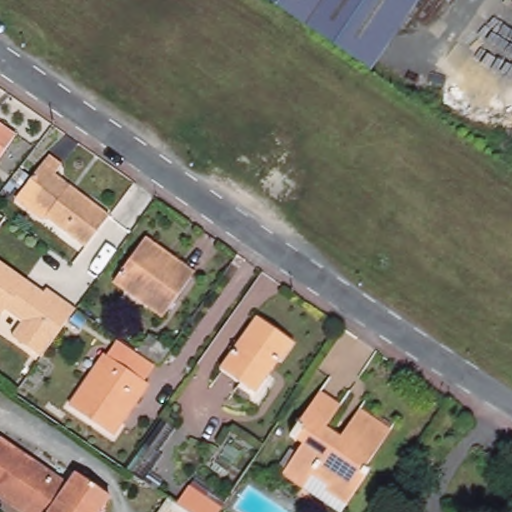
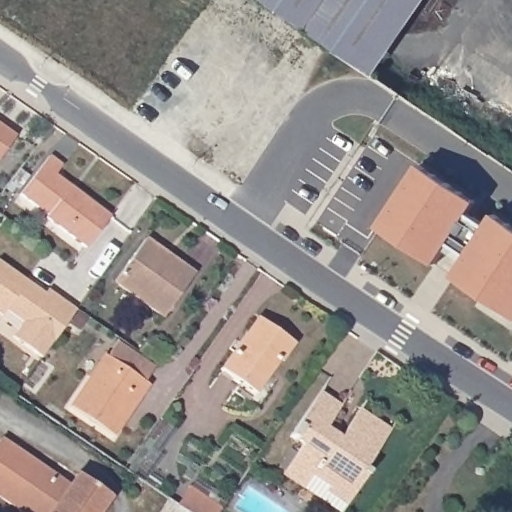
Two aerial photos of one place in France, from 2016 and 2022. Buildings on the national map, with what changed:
unchanged [(262,0),(412,0),(365,70),(262,0)]
unchanged [(0,153),(0,126),(13,135),(0,153)]
unchanged [(14,199),(19,194),(47,155),(60,165),(54,174),(107,216),(83,247),(42,217),(40,220),(14,199)]
new [(451,277),(461,260),(447,250),(436,267),(377,229),(419,165),(477,203),(470,214),(486,223),(492,213),(512,226),(512,317),(451,277)]
unchanged [(10,178),(17,169),(26,175),(17,188),(8,181),(10,178)]
unchanged [(161,317),(112,281),(144,239),(160,250),(179,263),(192,273),(161,317)]
unchanged [(60,333),(45,355),(15,334),(20,326),(0,313),(0,258),(1,257),(47,289),(50,284),(80,305),(78,309),(60,333)]
unchanged [(291,343),(279,361),(276,359),(252,394),(236,383),(231,390),(212,377),(255,317),(291,343)]
unchanged [(157,365),(136,351),(147,334),(169,349),(157,365)]
unchanged [(53,367),(44,361),(49,353),(58,359),(53,367)]
unchanged [(67,406),(102,354),(145,384),(110,435),(67,406)]
unchanged [(275,466),(280,469),(296,448),(289,443),(288,444),(282,441),(308,403),(313,396),(333,409),(328,417),(318,432),(333,442),(352,414),(383,434),(357,473),(361,476),(336,512),(325,512),(296,493),(275,479),(269,475),(275,466)]
unchanged [(72,474),(106,497),(95,512),(18,512),(0,499),(0,441),(65,485),(72,474)]
unchanged [(224,508),(221,512),(163,512),(173,496),(182,499),(190,484),(190,483),(224,508)]

